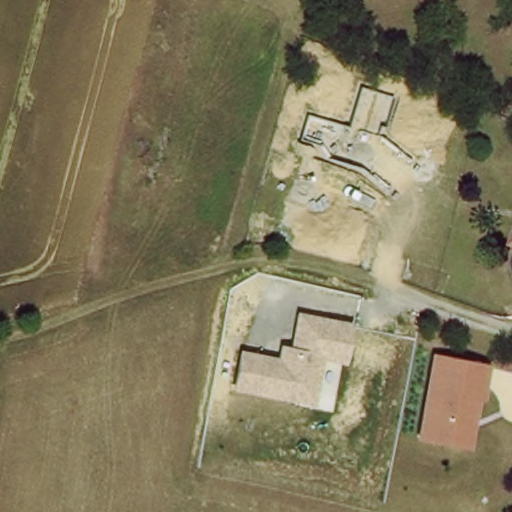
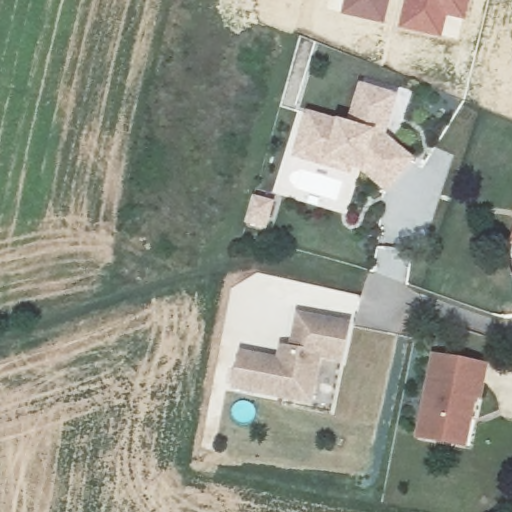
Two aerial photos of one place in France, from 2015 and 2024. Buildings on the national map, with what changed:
new [(384,24),(339,12),(342,0),(389,0),(384,24)]
new [(402,0),(469,0),(464,22),(447,19),(443,38),(396,28),(402,0)]
new [(387,194),(364,172),(351,168),(351,174),(294,158),(306,112),(337,121),(347,124),(361,83),(398,95),(386,136),(417,162),(387,194)]
unchanged [(344,364),(323,359),(316,404),(234,389),(241,350),(279,357),(281,344),(291,345),(299,309),(353,322),(344,364)]
unchanged [(484,399),(479,398),(470,448),(419,438),(436,352),(491,364),(484,399)]

